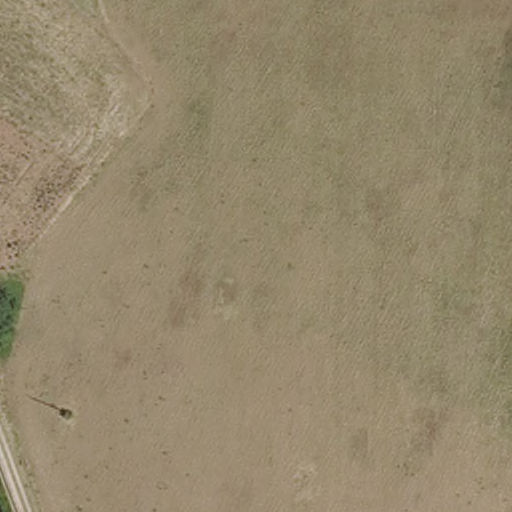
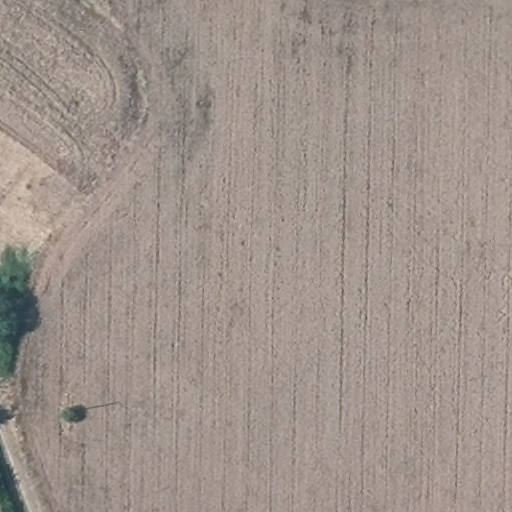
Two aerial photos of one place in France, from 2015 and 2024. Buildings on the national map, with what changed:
[]

